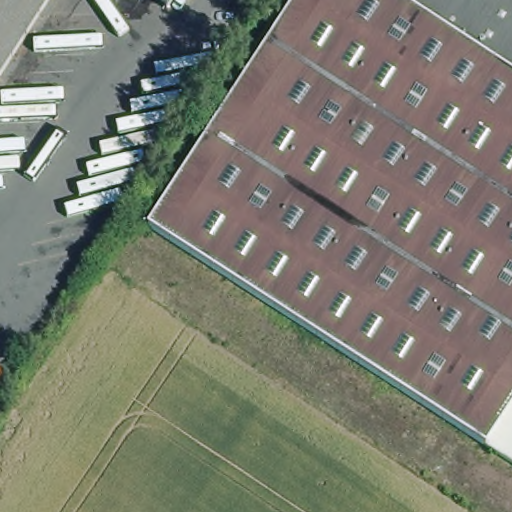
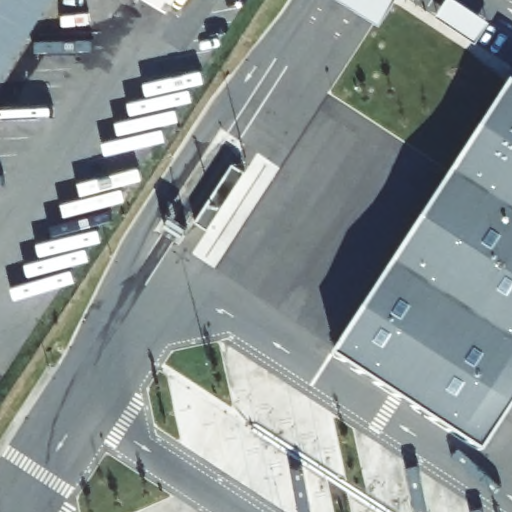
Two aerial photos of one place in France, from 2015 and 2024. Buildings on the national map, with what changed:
unchanged [(0,0),(50,0),(0,78),(0,0)]
demolished [(149,227),(294,0),(512,0),(512,409),(508,415),(489,445),(149,227)]
unchanged [(155,0),(173,0),(168,8),(155,0)]
new [(394,0),(380,23),(344,0),(394,0)]
new [(512,73),(512,398),(485,439),(339,343),(512,73)]

